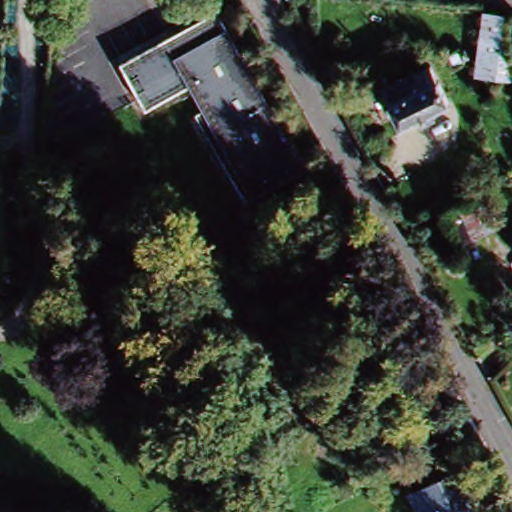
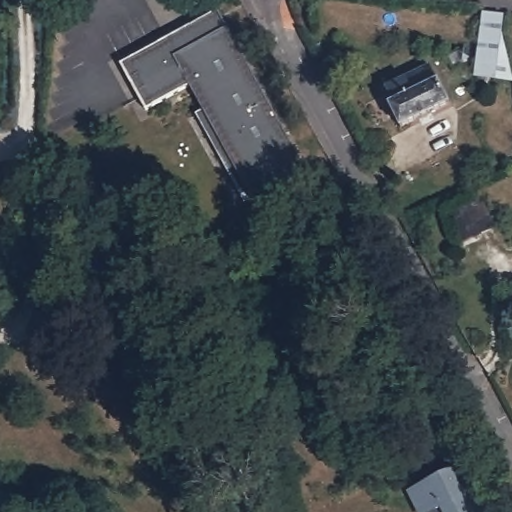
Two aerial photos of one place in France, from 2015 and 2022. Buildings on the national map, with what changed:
unchanged [(223,7),(233,24),(181,52),(171,35),(223,7)]
unchanged [(503,14),(500,41),(510,76),(478,73),(484,12),(503,14)]
unchanged [(195,82),(151,106),(126,60),(171,35),(181,52),(233,24),(310,166),(257,195),(250,199),(201,111),(208,107),(195,82)]
unchanged [(465,48),(470,56),(462,60),(458,52),(465,48)]
unchanged [(430,71),(450,107),(402,132),(382,95),(430,71)]
unchanged [(467,203),(480,229),(460,239),(447,212),(467,203)]
unchanged [(450,491),(461,512),(393,512),(385,496),(405,487),(404,484),(425,474),(426,476),(440,470),(450,491)]

